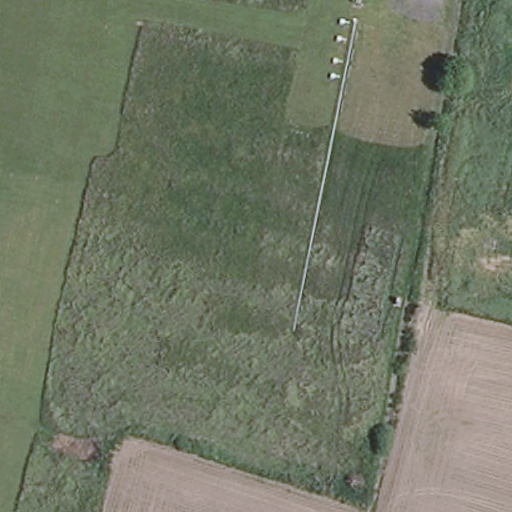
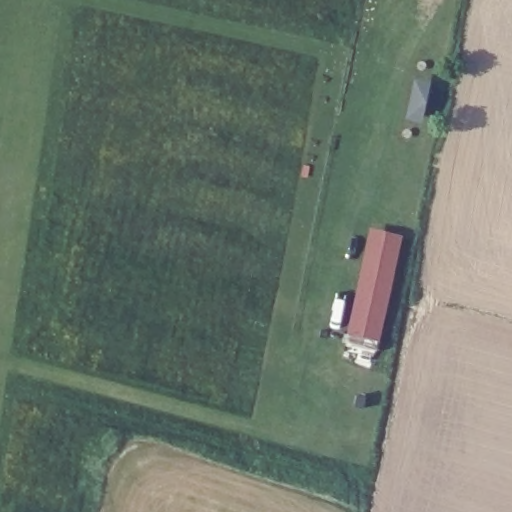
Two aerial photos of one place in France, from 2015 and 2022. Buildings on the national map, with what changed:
new [(423,127),(406,122),(415,77),(433,80),(423,127)]
new [(404,236),(379,343),(348,337),(369,228),(404,236)]

